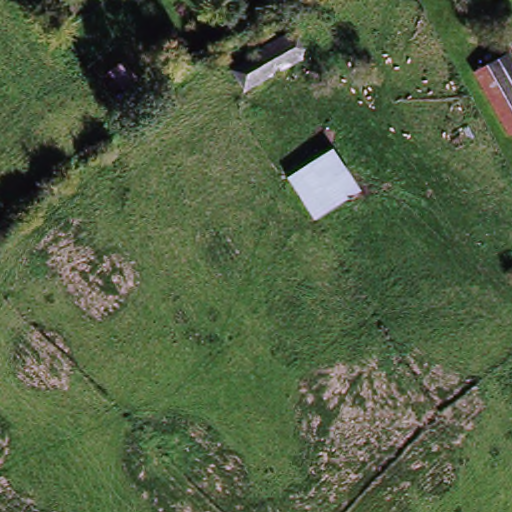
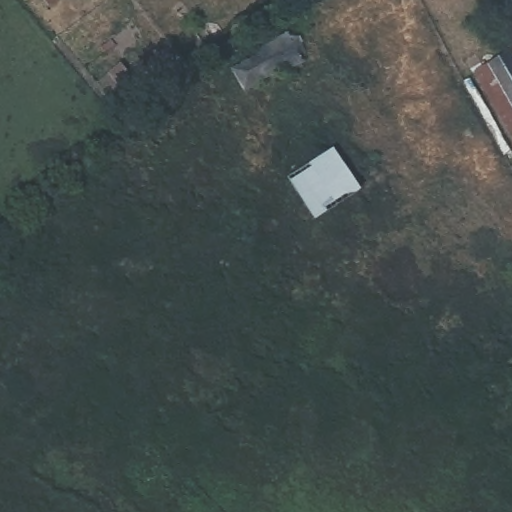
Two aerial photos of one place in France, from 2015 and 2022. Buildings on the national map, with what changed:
unchanged [(239,94),(228,73),(276,43),(288,64),(239,94)]
unchanged [(492,57),(504,51),(512,65),(512,113),(482,63),(492,57)]
unchanged [(482,63),(512,113),(512,136),(511,137),(470,70),(482,63)]
unchanged [(329,148),(358,187),(311,221),(284,177),(329,148)]

